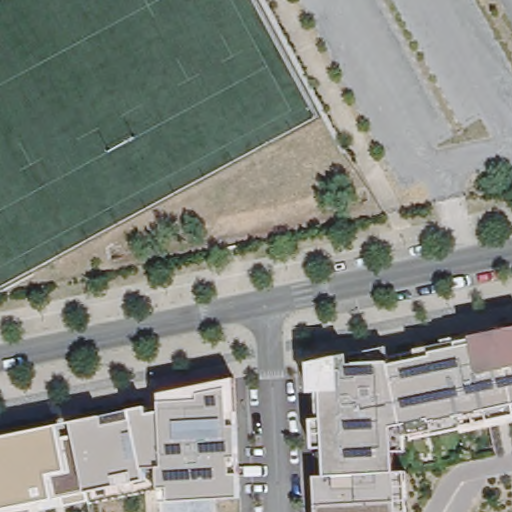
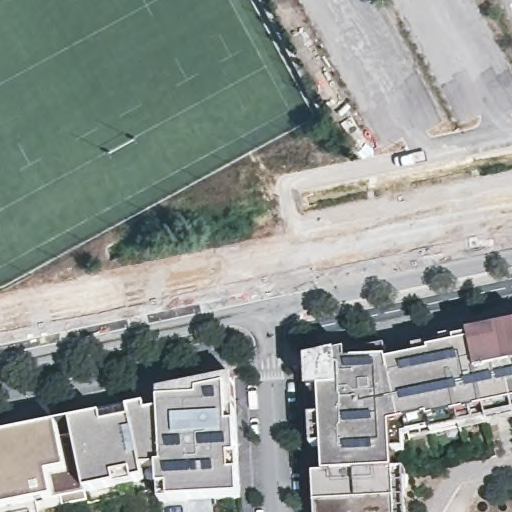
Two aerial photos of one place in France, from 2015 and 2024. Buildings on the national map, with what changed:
unchanged [(408,439),(412,512),(318,512),(310,360),(512,320),(512,416),(408,439)]
unchanged [(243,494),(162,497),(162,477),(87,492),(50,500),(52,512),(0,512),(0,435),(162,402),(163,389),(238,377),(243,494)]

